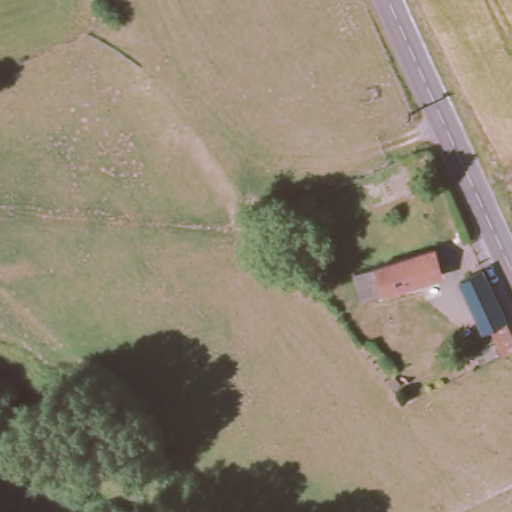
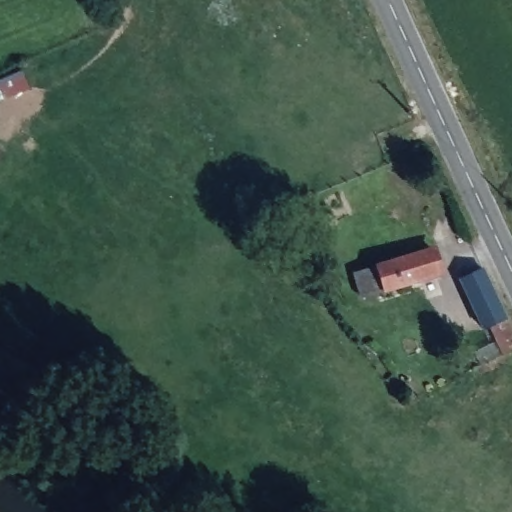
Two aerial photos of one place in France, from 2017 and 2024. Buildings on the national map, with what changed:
unchanged [(445,266),(367,291),(359,265),(437,242),(445,266)]
unchanged [(460,271),(480,260),(502,302),(512,320),(512,342),(504,346),(486,310),(480,313),(460,271)]

